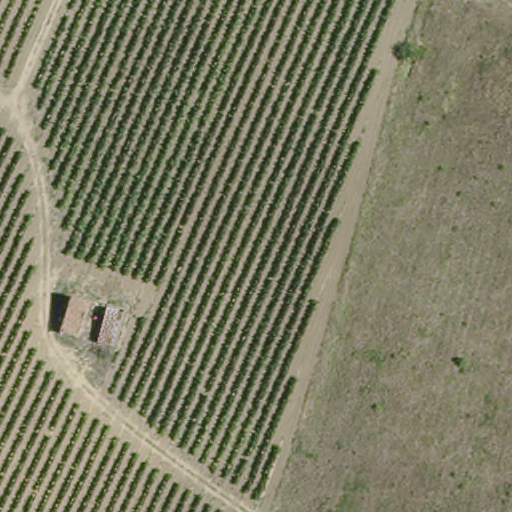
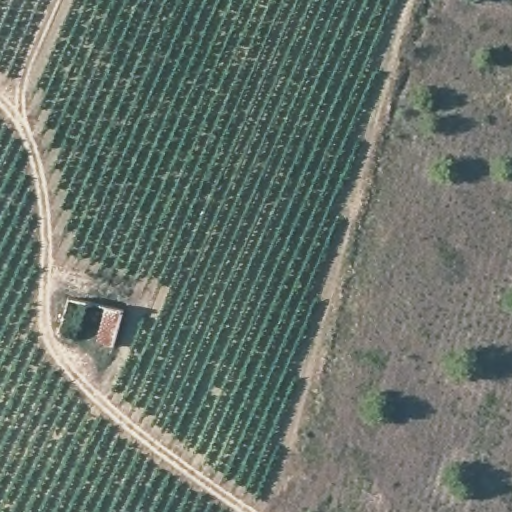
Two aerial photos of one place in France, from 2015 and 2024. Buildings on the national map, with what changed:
unchanged [(85,305),(74,342),(53,337),(64,300),(85,305)]
unchanged [(112,351),(92,343),(102,308),(123,315),(112,351)]

